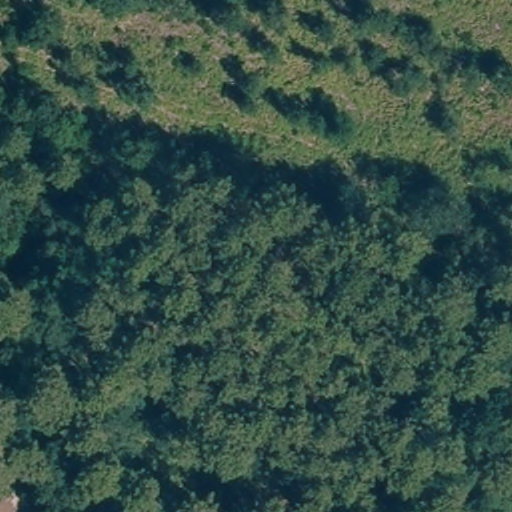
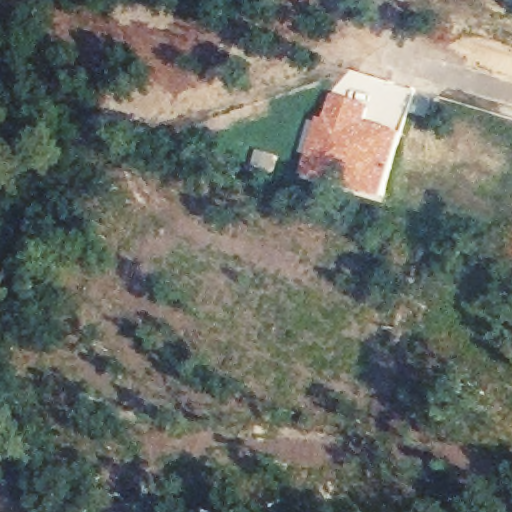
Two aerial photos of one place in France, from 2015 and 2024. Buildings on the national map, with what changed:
new [(306,118),(317,122),(331,93),(373,107),(369,121),(403,132),(396,164),(383,204),(298,178),(306,157),(296,153),(306,118)]

